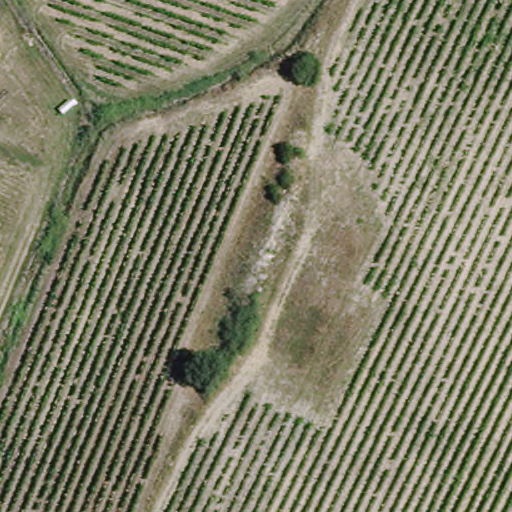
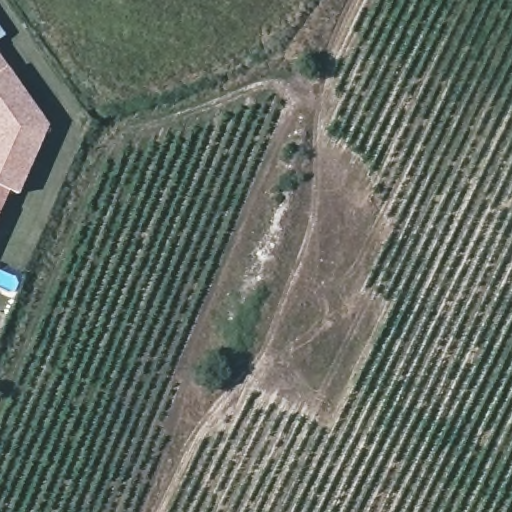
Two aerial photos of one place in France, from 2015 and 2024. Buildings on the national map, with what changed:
new [(8,67),(49,124),(17,195),(10,190),(8,193),(0,211),(0,55),(8,67)]

